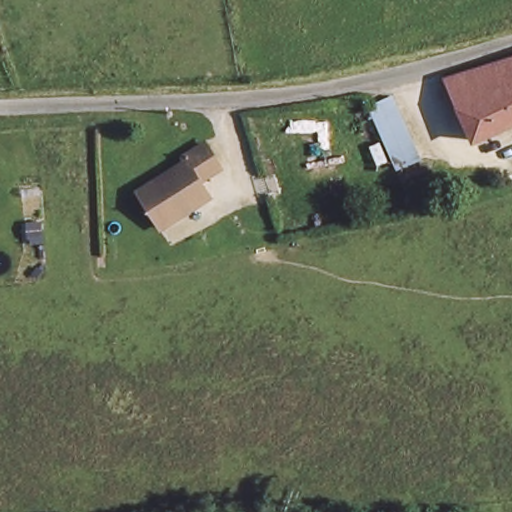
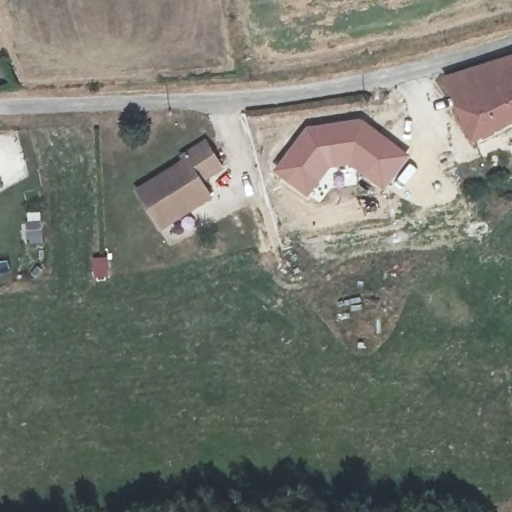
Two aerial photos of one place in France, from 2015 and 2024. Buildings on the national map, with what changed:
unchanged [(512,56),(512,119),(472,130),(455,70),(512,56)]
demolished [(366,108),(396,94),(425,159),(399,172),(366,108)]
new [(305,125),(361,118),(411,157),(383,192),(354,170),(349,169),(342,169),(332,171),(308,199),(271,171),(305,125)]
unchanged [(219,168),(200,182),(209,197),(163,228),(139,193),(186,162),(184,157),(207,144),(219,168)]

